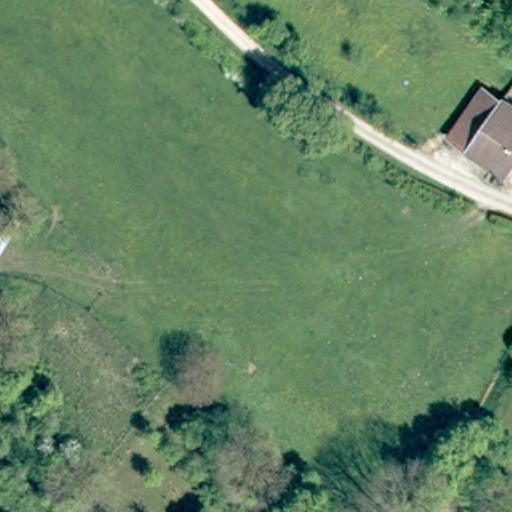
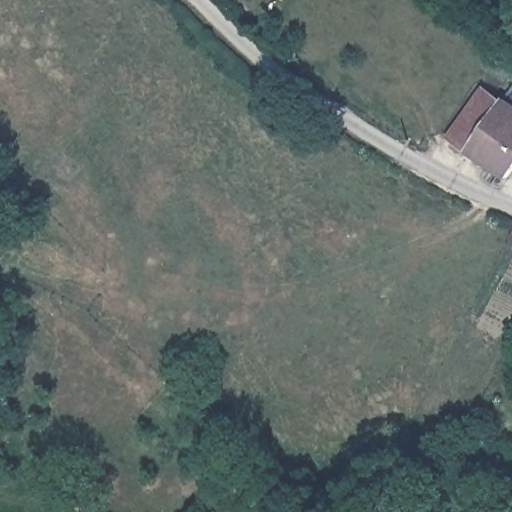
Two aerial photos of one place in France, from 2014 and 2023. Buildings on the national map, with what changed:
unchanged [(479,80),(496,92),(498,89),(512,99),(512,154),(502,169),(446,127),(479,80)]

